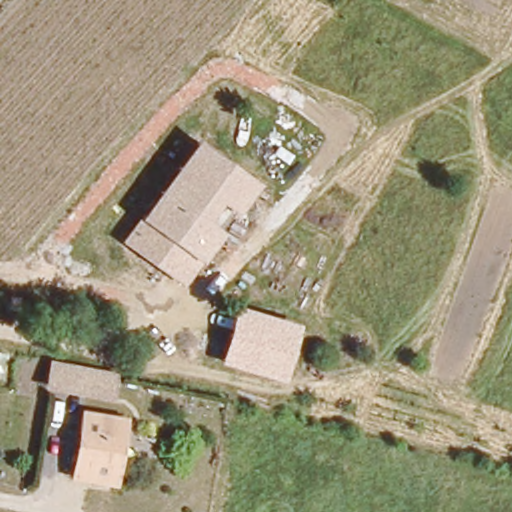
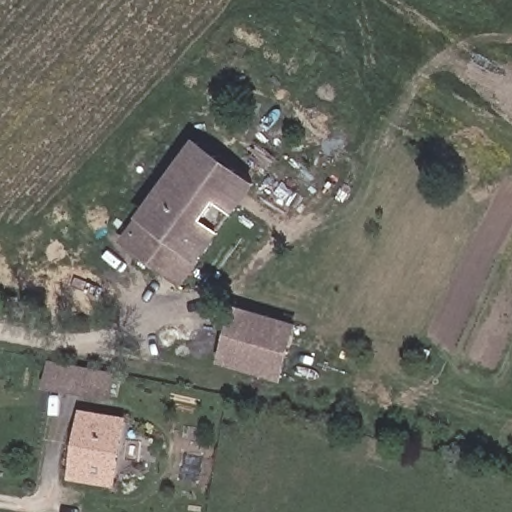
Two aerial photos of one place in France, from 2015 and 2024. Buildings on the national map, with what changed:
unchanged [(200,136),(254,172),(183,274),(128,238),(200,136)]
unchanged [(282,379),(222,362),(238,306),(300,322),(282,379)]
unchanged [(113,399),(44,387),(49,359),(119,372),(113,399)]
unchanged [(118,478),(110,477),(75,470),(86,407),(119,412),(129,414),(118,478)]

